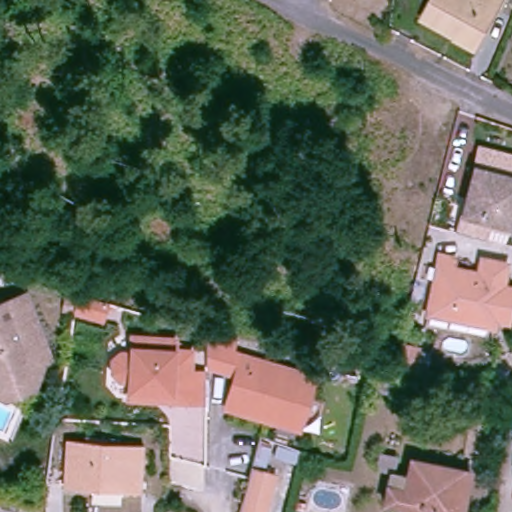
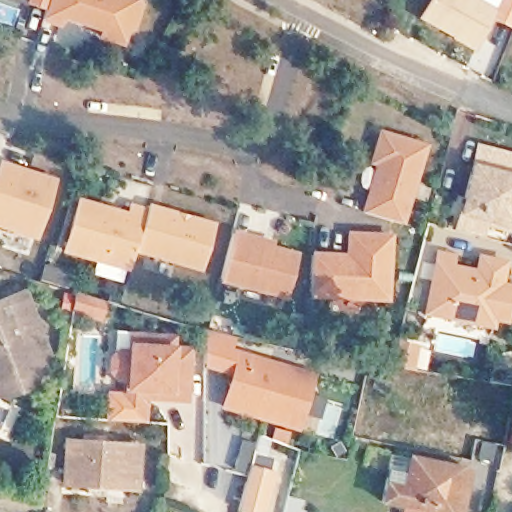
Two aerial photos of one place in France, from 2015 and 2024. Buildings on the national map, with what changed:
new [(45,9),(29,4),(30,0),(48,0),(45,9)]
new [(100,38),(102,32),(93,28),(60,18),(58,26),(41,20),(45,9),(48,0),(129,0),(135,2),(138,8),(131,30),(125,33),(121,45),(100,38)]
unchanged [(499,6),(476,45),(454,33),(456,29),(424,12),(431,0),(487,0),(499,6)]
new [(429,143),(404,224),(360,211),(374,166),(368,165),(379,128),(429,143)]
unchanged [(461,212),(483,147),(512,156),(512,220),(510,226),(486,219),(482,235),(456,228),(461,212)]
new [(53,183),(34,239),(0,228),(0,165),(53,183)]
new [(78,203),(127,217),(129,208),(145,213),(134,252),(129,271),(64,252),(78,203)]
new [(145,213),(147,208),(212,227),(199,270),(134,252),(145,213)]
new [(221,282),(234,229),(277,240),(275,245),(299,251),(288,300),(221,282)]
new [(321,256),(338,257),(348,257),(349,235),(389,238),(386,300),(319,296),(309,296),(311,255),(321,256)]
unchanged [(493,323),(492,330),(426,315),(439,257),(453,260),(451,270),(477,275),(481,261),(506,267),(501,289),(512,291),(512,298),(506,326),(493,323)]
unchanged [(40,386),(14,395),(0,389),(0,303),(31,291),(55,358),(49,360),(52,366),(40,386)]
unchanged [(85,293),(113,302),(108,317),(82,308),(85,293)]
unchanged [(237,340),(234,355),(216,351),(219,337),(237,340)]
unchanged [(134,397),(133,380),(124,380),(116,372),(116,365),(123,357),(133,357),(133,340),(175,340),(175,351),(177,351),(193,350),(193,370),(210,370),(210,396),(176,396),(175,396),(157,396),(134,397)]
unchanged [(411,347),(408,370),(388,367),(395,342),(411,347)]
unchanged [(272,423),(234,412),(226,410),(232,390),(241,357),(315,377),(304,416),(301,430),(272,423)]
unchanged [(121,485),(120,490),(88,488),(88,484),(63,483),(66,440),(82,441),(83,436),(103,437),(102,442),(138,444),(136,475),(136,485),(121,485)]
unchanged [(448,511),(382,497),(389,466),(406,470),(410,455),(459,466),(448,511)]
unchanged [(272,505),(249,502),(258,461),(280,465),(272,505)]

